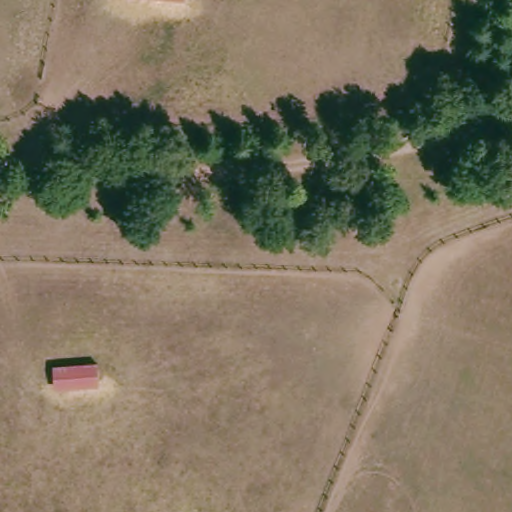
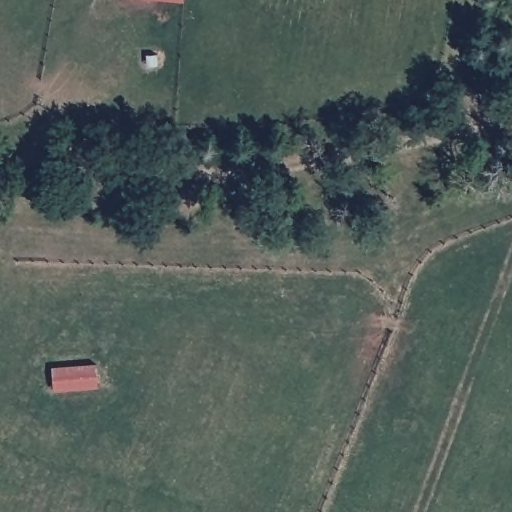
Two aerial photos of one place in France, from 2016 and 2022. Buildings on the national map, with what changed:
unchanged [(102,388),(54,386),(56,356),(105,361),(102,388)]

